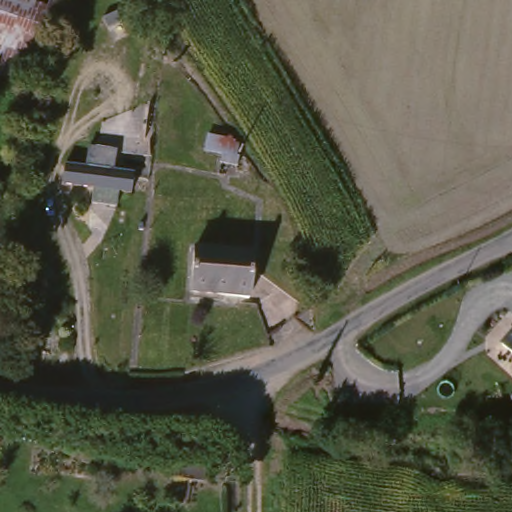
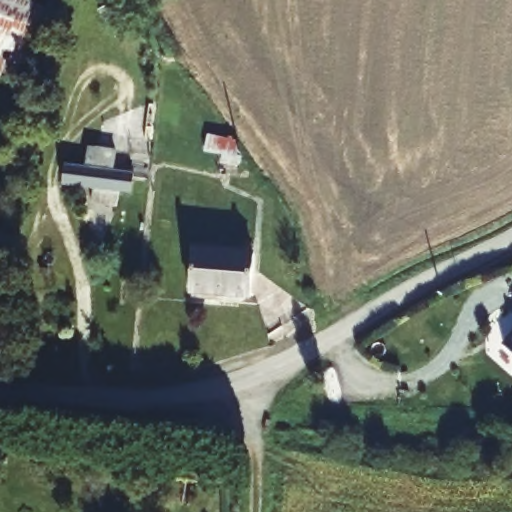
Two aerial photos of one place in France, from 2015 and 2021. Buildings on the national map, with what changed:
unchanged [(49,65),(29,58),(21,80),(0,72),(0,0),(48,0),(66,7),(49,65)]
unchanged [(66,7),(48,0),(69,0),(66,7)]
unchanged [(238,137),(238,153),(210,151),(212,133),(238,137)]
unchanged [(101,201),(102,186),(71,183),(72,163),(141,169),(140,188),(127,188),(126,203),(101,201)]
unchanged [(264,255),(260,298),(202,294),(205,251),(264,255)]
unchanged [(33,296),(34,322),(16,323),(15,297),(33,296)]
unchanged [(506,335),(512,328),(512,341),(506,335)]

